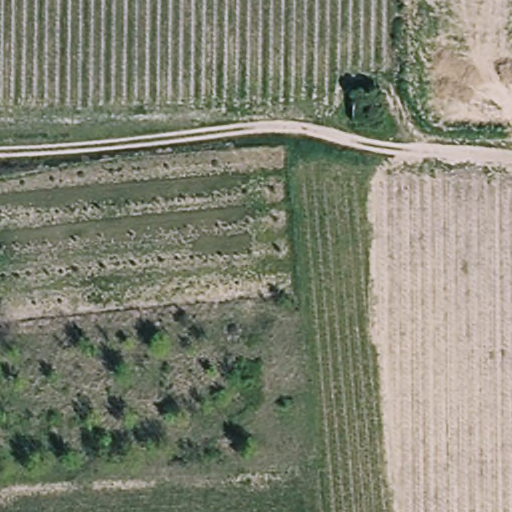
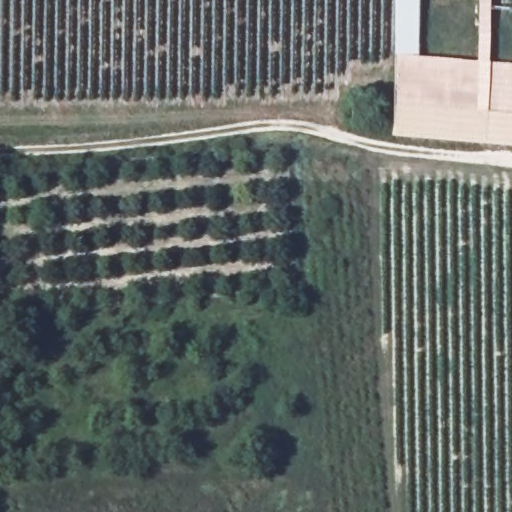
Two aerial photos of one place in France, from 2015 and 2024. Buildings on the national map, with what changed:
new [(425,0),(421,56),(480,60),(484,0),(494,0),(489,61),(512,63),(512,146),(393,137),(399,52),(400,0),(425,0)]
unchanged [(361,94),(387,94),(386,119),(361,118),(361,94)]

